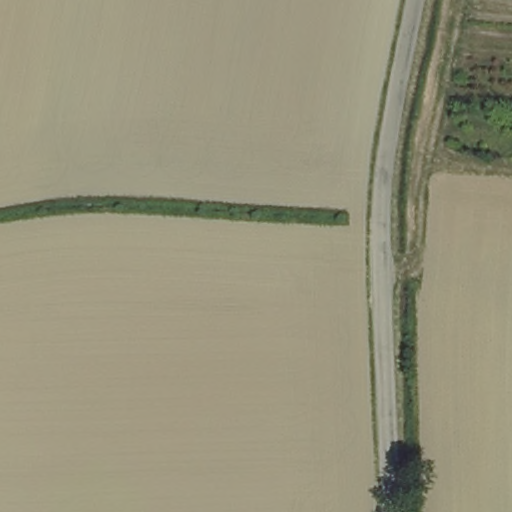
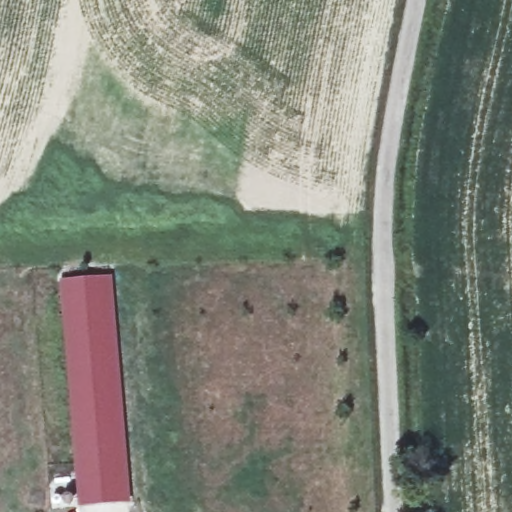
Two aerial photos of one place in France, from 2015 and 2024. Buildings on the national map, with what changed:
new [(59,282),(112,277),(130,504),(77,508),(59,282)]

